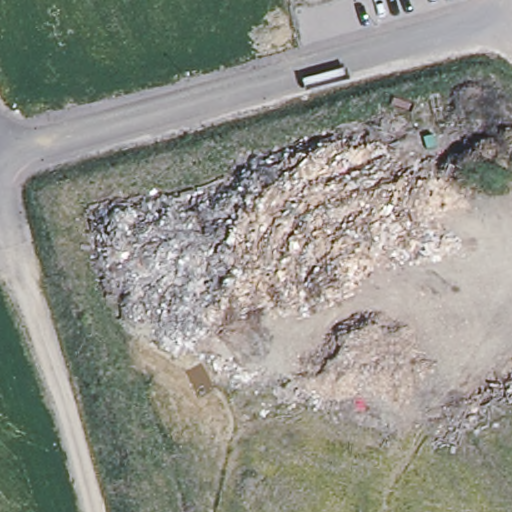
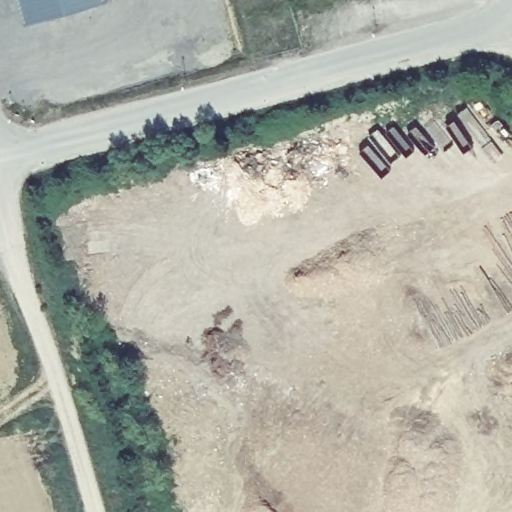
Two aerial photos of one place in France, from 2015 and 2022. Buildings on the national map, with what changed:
new [(21,0),(105,0),(27,22),(21,0)]

